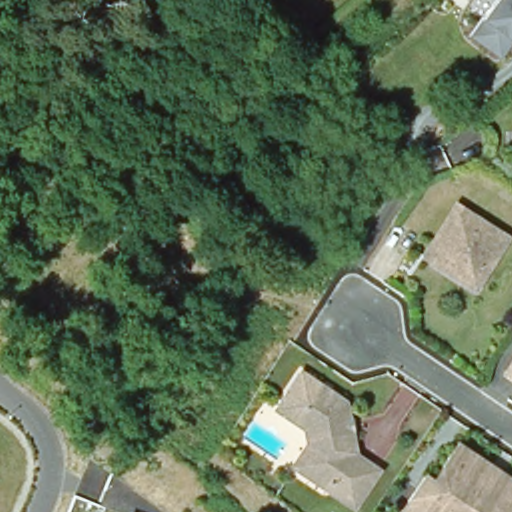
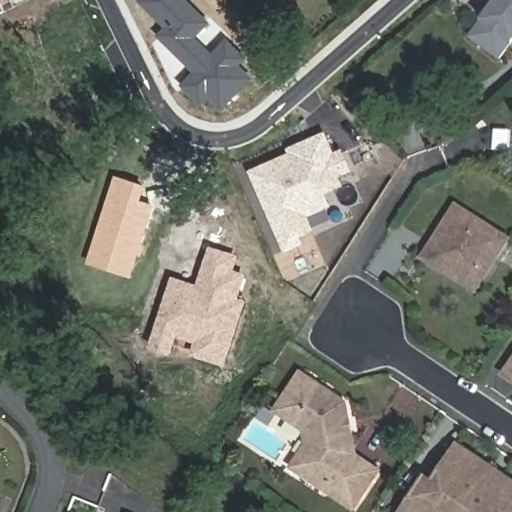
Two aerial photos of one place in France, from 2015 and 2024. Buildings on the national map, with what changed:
new [(139,2),(141,0),(187,0),(210,24),(197,37),(213,54),(227,39),(247,58),(247,59),(241,66),(254,79),(223,111),(210,97),(202,106),(181,87),(194,73),(157,37),(165,29),(139,2)]
unchanged [(512,0),(512,41),(500,57),(470,36),(495,0),(512,0)]
new [(289,154),(287,149),(325,132),(335,153),(342,149),(353,172),(340,177),(345,187),(326,195),(332,207),(327,210),(332,220),(314,228),(316,232),(301,239),(305,245),(285,254),(249,172),(289,154)]
new [(147,186),(143,201),(156,206),(144,245),(146,247),(143,257),(140,256),(132,278),(88,264),(116,176),(147,186)]
unchanged [(441,268),(423,257),(456,205),(508,237),(495,257),(475,290),(441,268)]
new [(198,285),(210,247),(240,257),(236,271),(247,275),(240,298),(247,302),(226,367),(191,357),(195,344),(178,338),(171,356),(150,350),(172,277),(198,285)]
unchanged [(505,373),(512,363),(512,378),(505,373)]
unchanged [(300,456),(308,443),(305,427),(277,408),(301,372),(345,402),(348,420),(350,428),(352,446),(349,447),(350,452),(354,454),(377,470),(355,504),(327,486),(295,463),(300,456)]
unchanged [(430,472),(437,477),(459,444),(461,440),(512,474),(512,512),(404,512),(403,512),(430,472)]

